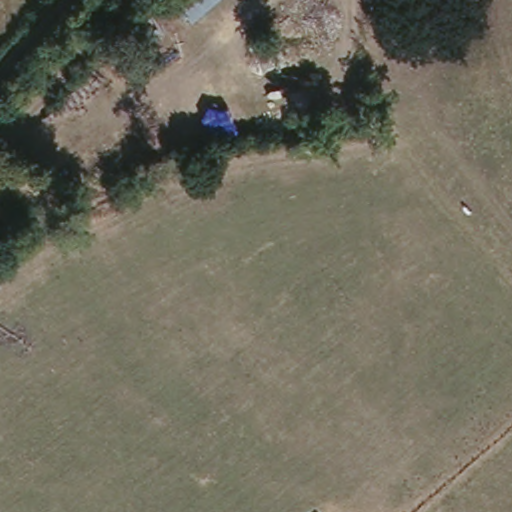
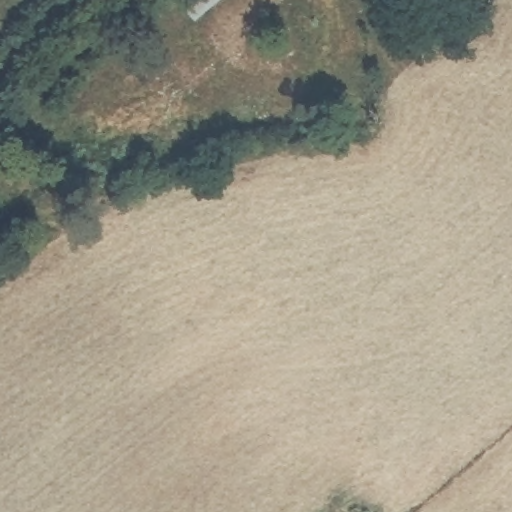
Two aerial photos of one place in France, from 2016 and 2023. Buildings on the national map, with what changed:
unchanged [(179,0),(219,0),(196,24),(172,6),(179,0)]

